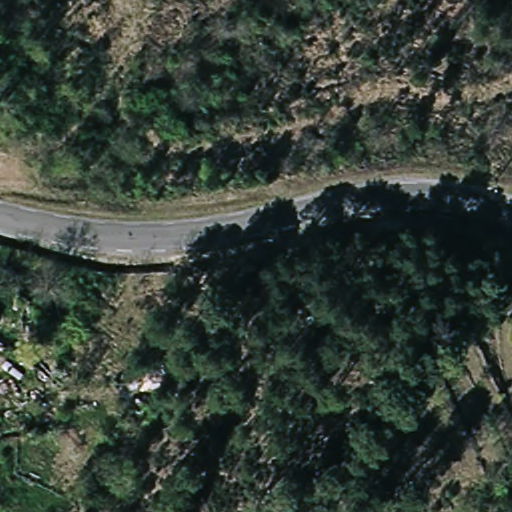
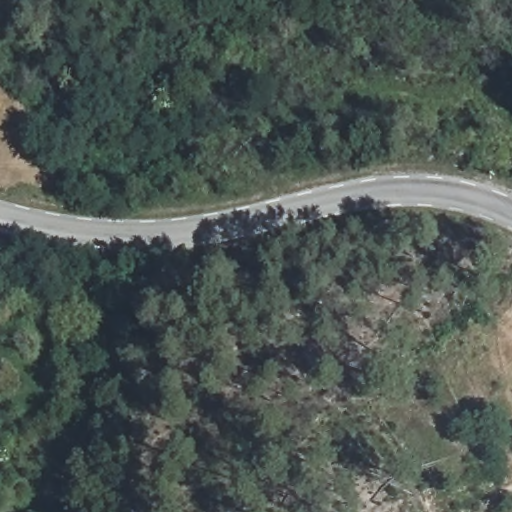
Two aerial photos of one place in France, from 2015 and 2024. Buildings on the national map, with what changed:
unchanged [(0,310),(1,311),(0,314),(0,310)]

